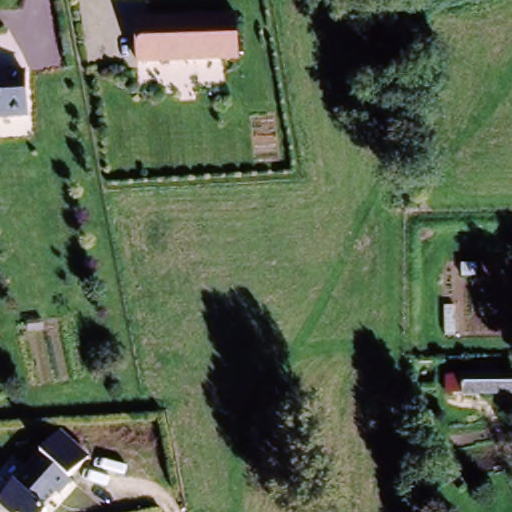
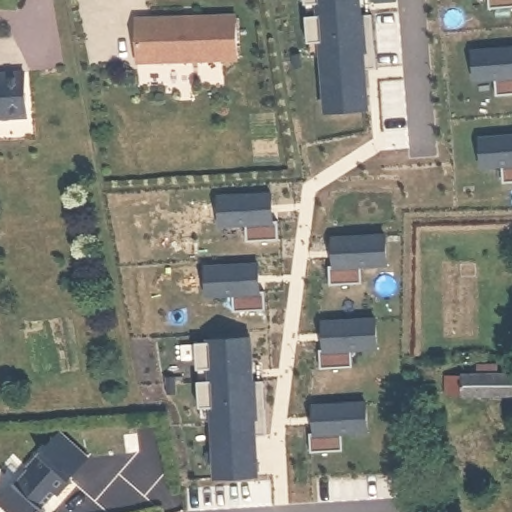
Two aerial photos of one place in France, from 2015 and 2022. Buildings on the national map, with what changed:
new [(370,13),(375,69),(363,70),(367,108),(323,111),(320,57),(308,59),(303,0),(358,0),(359,14),(370,13)]
new [(486,9),(486,0),(512,0),(512,7),(486,9)]
unchanged [(135,18),(235,14),(236,58),(135,60),(135,18)]
new [(512,47),(512,95),(495,97),(494,80),(472,82),(471,51),(512,47)]
unchanged [(0,70),(24,69),(28,117),(0,118),(0,70)]
new [(512,136),(512,184),(502,185),(500,166),(481,168),(477,139),(512,136)]
new [(277,241),(245,243),(245,227),(217,229),(215,194),(271,190),(277,241)]
new [(387,234),(388,267),(360,269),(362,283),(329,285),(327,269),(333,268),(331,237),(387,234)]
new [(264,311),(232,312),(231,298),(206,299),(204,265),(258,262),(264,311)]
new [(377,318),(380,351),(351,353),(353,367),(319,369),(318,352),(323,352),(321,320),(377,318)]
new [(251,383),(262,381),(266,429),(255,430),(258,475),(229,477),(228,468),(215,470),(211,408),(199,409),(195,382),(209,381),(207,369),(195,372),(194,344),(205,343),(206,340),(249,337),(251,383)]
unchanged [(451,376),(465,377),(465,374),(482,374),(482,364),(501,363),(501,374),(512,374),(512,394),(465,394),(465,393),(450,393),(451,376)]
new [(371,433),(342,437),(343,451),(309,453),(308,435),(313,436),(311,404),(367,399),(371,433)]
demolished [(370,494),(365,415),(397,413),(403,492),(380,494),(370,494)]
unchanged [(92,454),(45,512),(16,512),(0,499),(62,429),(92,454)]

